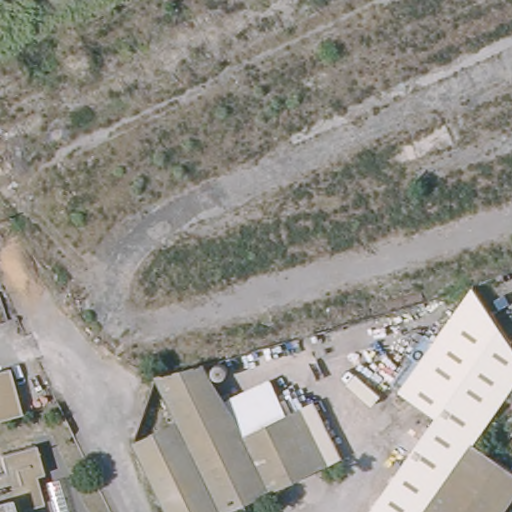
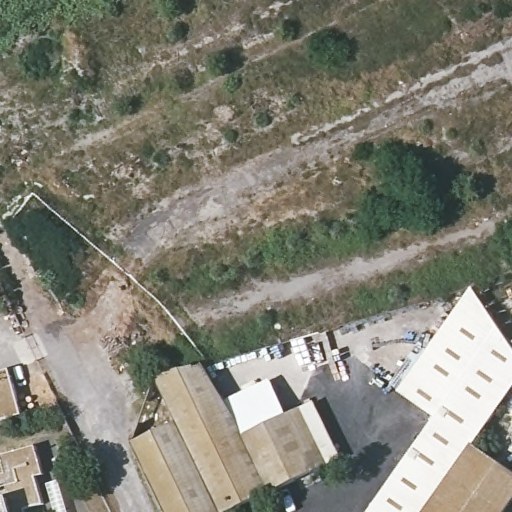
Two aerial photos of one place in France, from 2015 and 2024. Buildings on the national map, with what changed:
unchanged [(512,337),(512,386),(469,443),(425,512),(364,512),(435,410),(400,387),(474,280),(512,337)]
unchanged [(155,377),(202,365),(232,415),(243,435),(291,411),(318,470),(270,491),(227,512),(221,512),(174,417),(155,377)]
unchanged [(23,415),(0,420),(0,381),(18,377),(23,415)]
unchanged [(153,377),(155,377),(174,417),(221,512),(165,512),(132,444),(153,377)]
unchanged [(271,379),(291,411),(243,435),(232,415),(271,379)]
unchanged [(311,402),(337,457),(338,460),(318,470),(291,411),(311,402)]
unchanged [(52,469),(45,471),(52,499),(33,505),(35,512),(0,512),(0,471),(15,467),(10,450),(45,440),(52,469)]
unchanged [(425,512),(469,443),(512,471),(512,507),(508,512),(425,512)]

